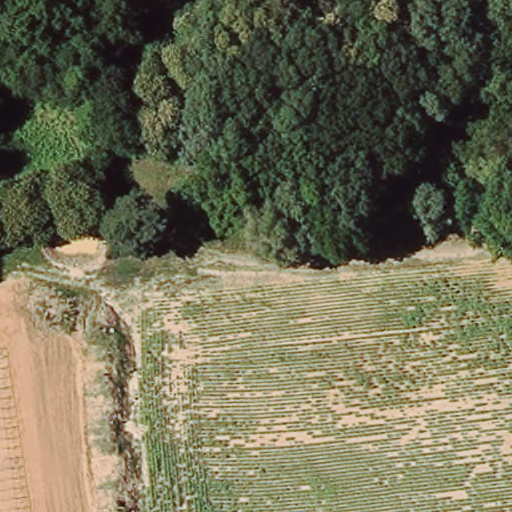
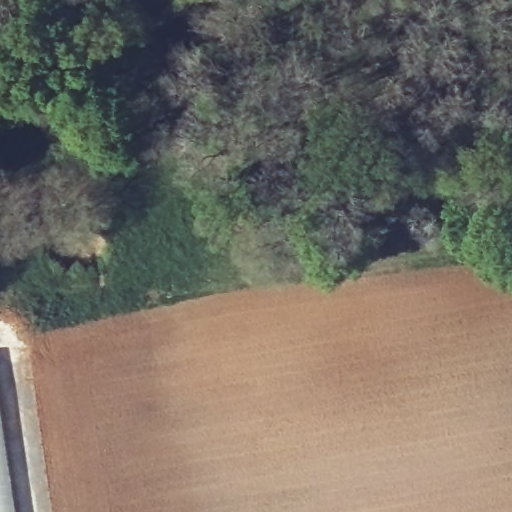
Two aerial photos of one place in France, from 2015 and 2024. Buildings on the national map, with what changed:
new [(6,437),(0,438),(0,395),(6,437)]
new [(6,437),(18,512),(0,512),(0,438),(6,437)]

